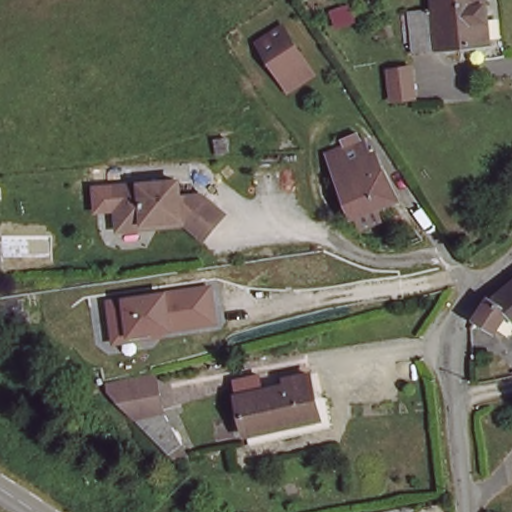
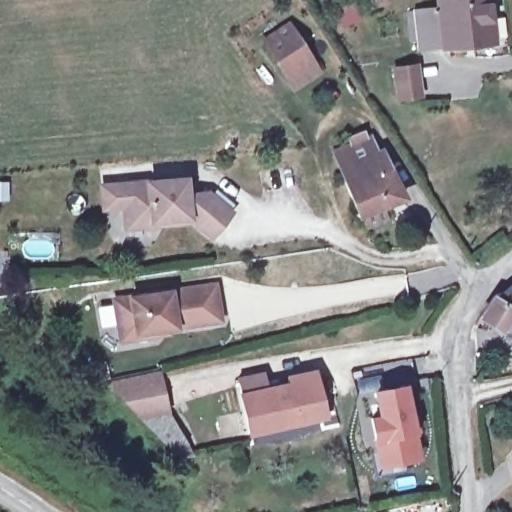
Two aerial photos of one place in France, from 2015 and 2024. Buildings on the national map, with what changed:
unchanged [(419,51),(418,14),(438,11),(438,0),(487,0),(490,45),(419,51)]
unchanged [(288,92),(281,82),(273,72),(267,64),(257,47),(280,31),(305,64),(312,75),(288,92)]
unchanged [(421,88),(395,98),(387,65),(413,59),(421,88)]
unchanged [(361,222),(358,214),(340,164),(343,163),(337,147),(353,141),(350,132),(365,127),(368,135),(372,133),(378,150),(382,148),(400,197),(379,206),(382,215),(361,222)]
unchanged [(211,231),(193,216),(120,224),(118,203),(95,207),(93,177),(186,169),(188,187),(206,185),(230,201),(211,231)]
unchanged [(112,325),(107,295),(207,279),(212,313),(149,324),(150,329),(130,332),(113,335),(112,325)]
unchanged [(512,286),(512,313),(505,311),(490,330),(473,319),(493,300),(512,286)]
unchanged [(148,374),(160,408),(130,415),(120,405),(101,386),(148,374)]
unchanged [(260,381),(264,397),(284,392),(283,383),(308,377),(317,425),(245,440),(235,387),(260,381)]
new [(375,412),(370,388),(407,380),(420,458),(375,469),(366,415),(375,412)]
unchanged [(160,408),(183,449),(168,455),(130,415),(160,408)]

